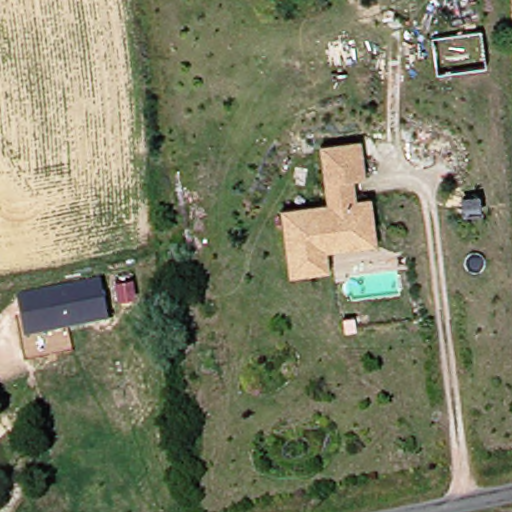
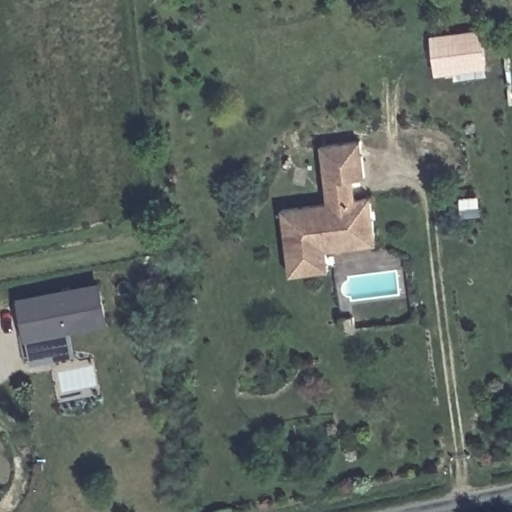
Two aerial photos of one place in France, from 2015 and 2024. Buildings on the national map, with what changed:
new [(482,29),(487,76),(455,80),(453,72),(436,75),(431,35),(482,29)]
unchanged [(321,254),(322,272),(283,275),(279,208),(327,206),(327,149),(362,150),(366,191),(354,191),(355,212),(370,212),(372,238),(373,250),(321,254)]
unchanged [(101,282),(109,325),(24,341),(17,297),(101,282)]

